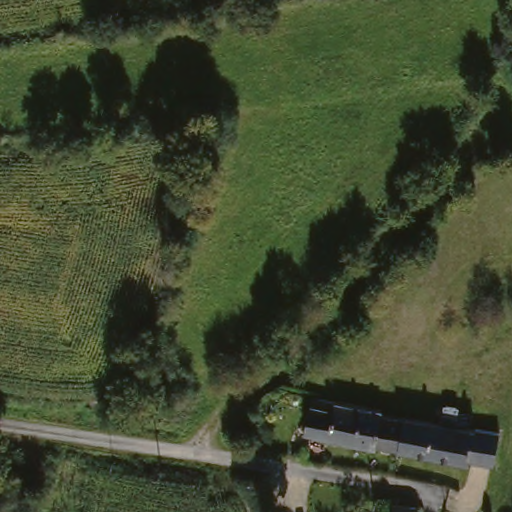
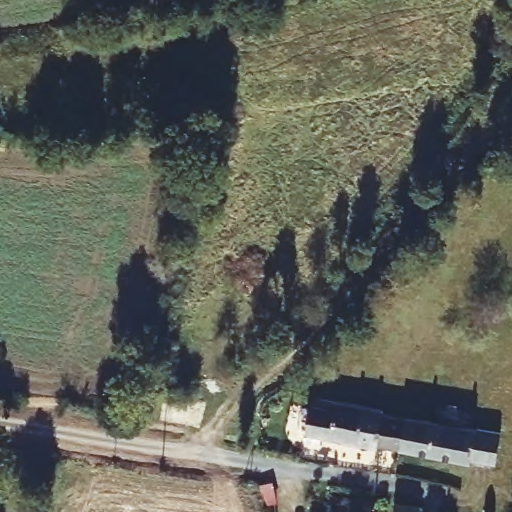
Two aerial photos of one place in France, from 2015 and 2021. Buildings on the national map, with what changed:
unchanged [(318,439),(303,436),(310,396),(327,400),(328,393),(341,395),(360,400),(353,444),(318,439)]
unchanged [(353,444),(360,400),(379,402),(378,407),(403,412),(398,451),(353,444)]
unchanged [(398,451),(403,412),(437,417),(431,456),(398,451)]
unchanged [(431,456),(437,417),(443,418),(470,423),(466,461),(431,456)]
unchanged [(470,423),(498,428),(494,463),(469,460),(469,462),(466,461),(470,423)]
unchanged [(387,496),(418,500),(418,512),(388,512),(387,496)]

